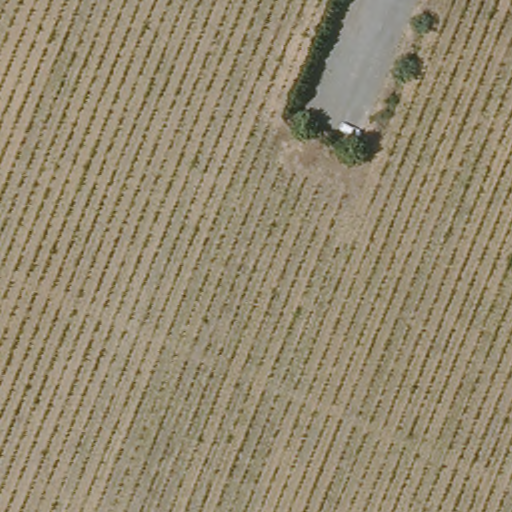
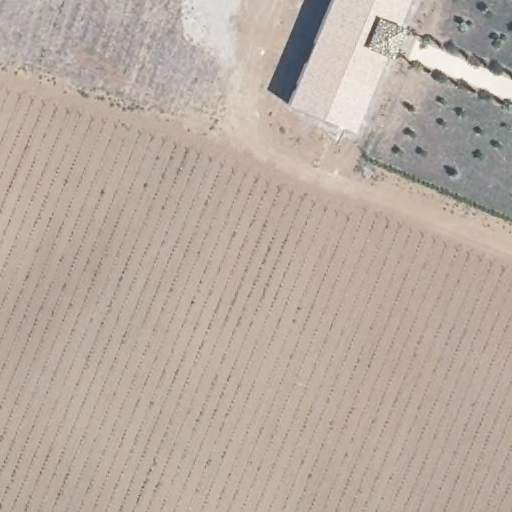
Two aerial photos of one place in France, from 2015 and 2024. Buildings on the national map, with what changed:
new [(405,0),(395,23),(370,13),(358,44),(383,56),(352,131),(285,103),(327,0),(405,0)]

